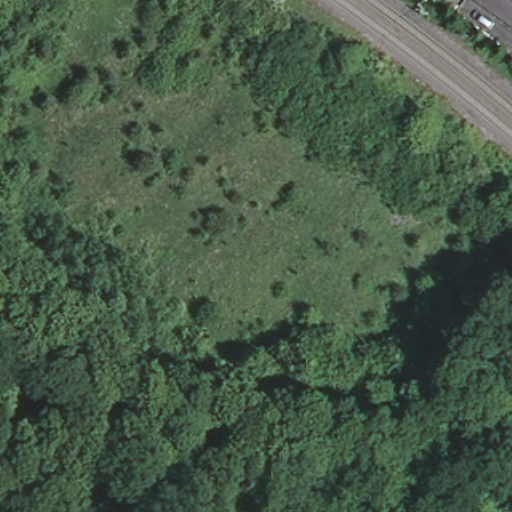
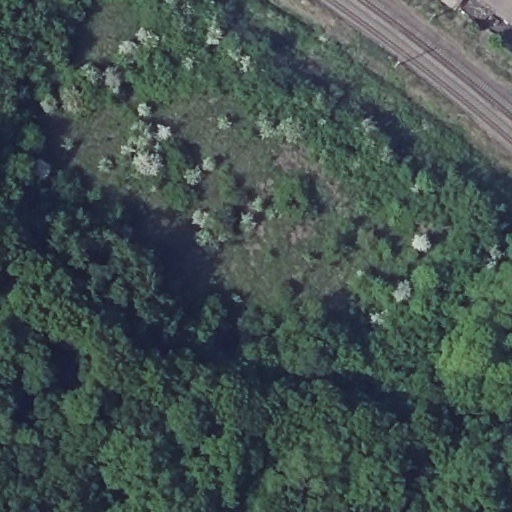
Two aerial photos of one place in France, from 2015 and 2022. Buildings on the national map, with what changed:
unchanged [(443,0),(451,0),(449,4),(443,0)]
unchanged [(485,0),(512,0),(512,19),(485,0)]

